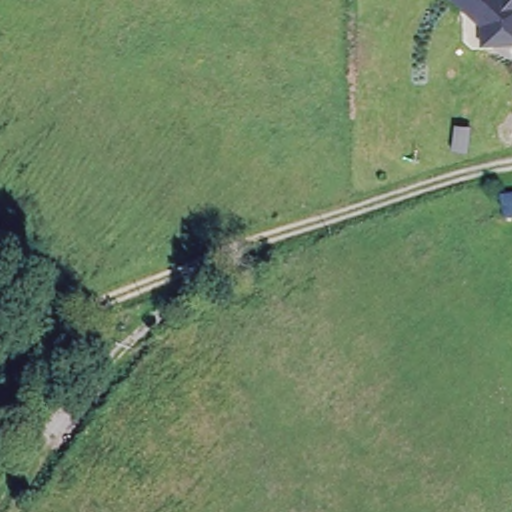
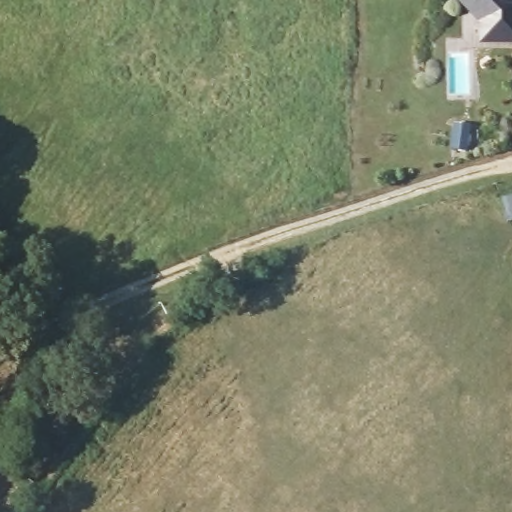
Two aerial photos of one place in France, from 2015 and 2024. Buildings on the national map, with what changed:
unchanged [(512,42),(490,41),(485,35),(485,19),(471,4),(466,4),(462,0),(512,0),(512,42)]
unchanged [(471,123),(468,150),(450,149),(453,122),(471,123)]
unchanged [(512,221),(505,223),(498,200),(512,197),(512,221)]

